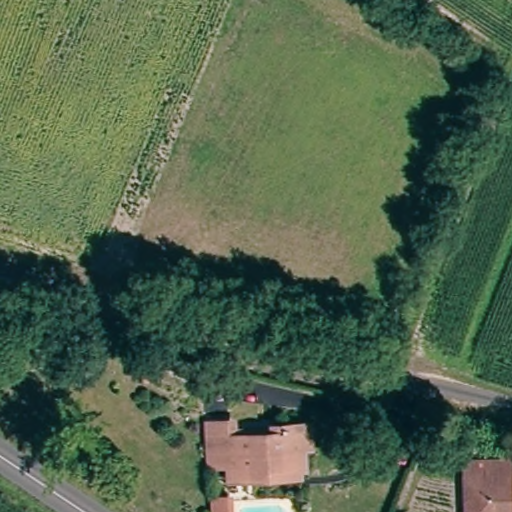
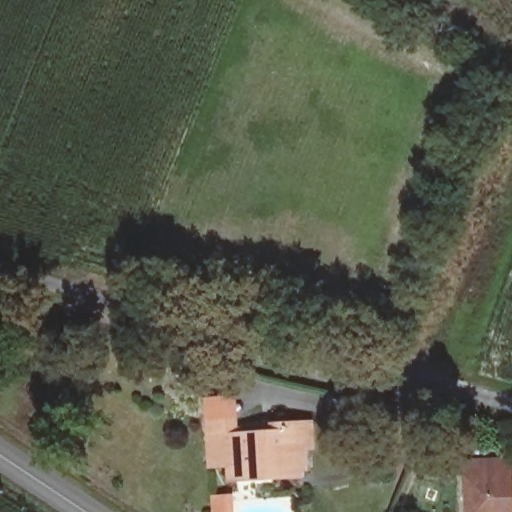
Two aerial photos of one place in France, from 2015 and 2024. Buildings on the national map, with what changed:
unchanged [(144,333),(162,341),(154,365),(137,360),(144,333)]
unchanged [(240,433),(276,435),(276,426),(304,427),(322,427),(320,451),(303,451),(302,468),(274,468),(275,477),(237,476),(235,460),(216,458),(216,420),(239,419),(240,433)]
unchanged [(462,459),(509,460),(510,482),(462,482),(462,459)]
unchanged [(511,512),(463,512),(462,482),(510,482),(511,512)]
unchanged [(233,496),(233,512),(212,512),(212,495),(233,496)]

